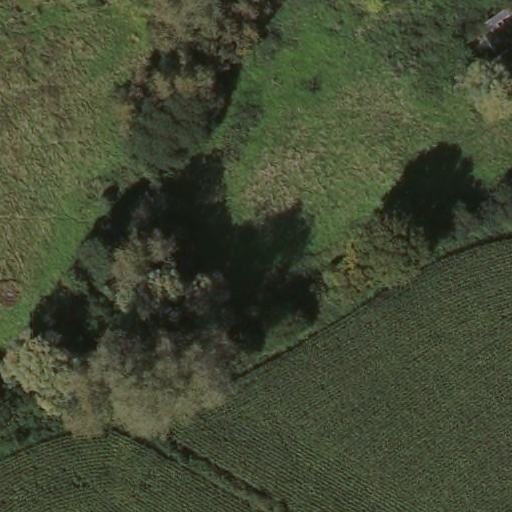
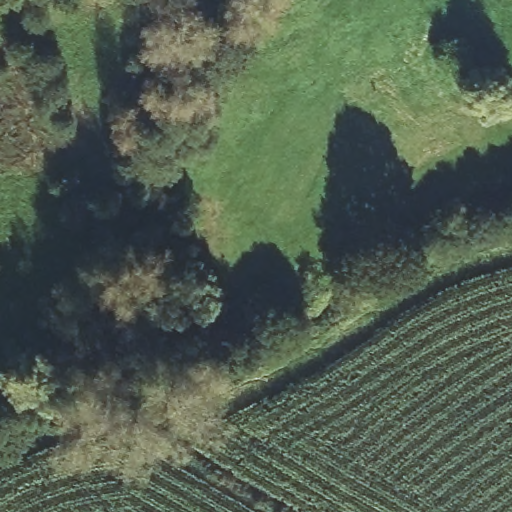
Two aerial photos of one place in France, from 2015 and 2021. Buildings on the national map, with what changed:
[]

